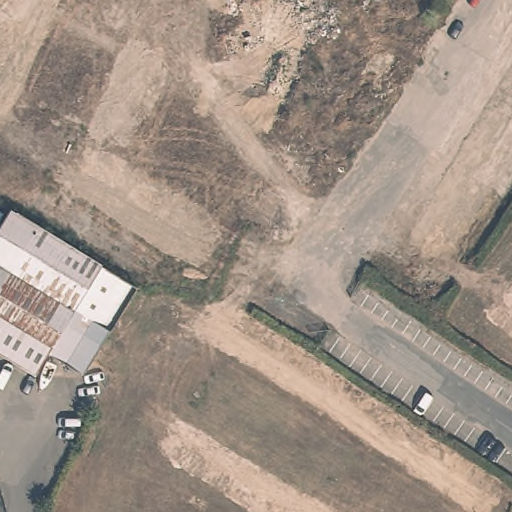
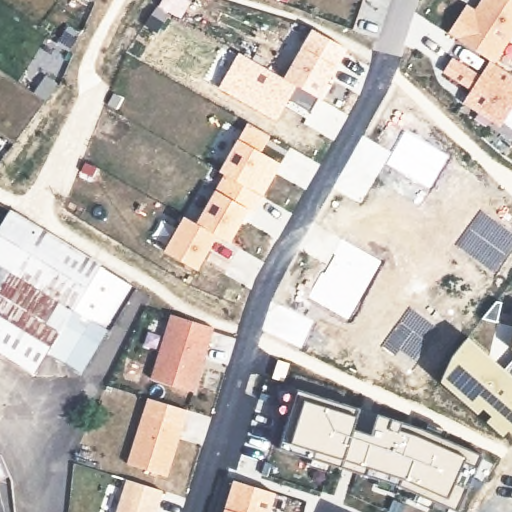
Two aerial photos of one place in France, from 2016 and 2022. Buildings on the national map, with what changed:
new [(475,10),(482,0),(512,0),(512,38),(495,64),(491,61),(449,34),(467,5),(475,10)]
new [(313,30),(347,49),(326,85),(329,86),(321,99),(284,78),(313,30)]
new [(480,77),(491,61),(495,64),(512,75),(512,108),(500,127),(463,103),(471,90),(443,72),(452,58),(480,77)]
new [(224,175),(217,171),(237,137),(247,123),(271,136),(261,151),(281,162),(262,197),(253,212),(248,210),(230,243),(217,236),(195,223),(224,175)]
unchanged [(97,356),(88,369),(53,349),(40,372),(0,349),(0,289),(13,266),(0,258),(0,223),(10,206),(139,281),(113,328),(97,356)]
new [(184,217),(217,236),(198,270),(165,252),(184,217)]
unchanged [(13,266),(0,289),(0,258),(13,266)]
new [(170,314),(214,326),(196,392),(151,379),(170,314)]
new [(494,357),(491,359),(503,370),(512,361),(512,434),(507,430),(503,434),(441,381),(468,335),(494,357)]
new [(512,344),(512,350),(510,350),(512,344)]
new [(297,389),(360,408),(356,415),(353,427),(371,433),(377,414),(400,420),(432,431),(482,454),(457,510),(399,486),(344,469),(278,449),(297,389)]
new [(148,398),(186,409),(168,477),(127,465),(148,398)]
new [(163,491),(156,512),(117,512),(127,479),(163,491)]
new [(272,512),(223,512),(233,479),(278,493),(272,512)]

